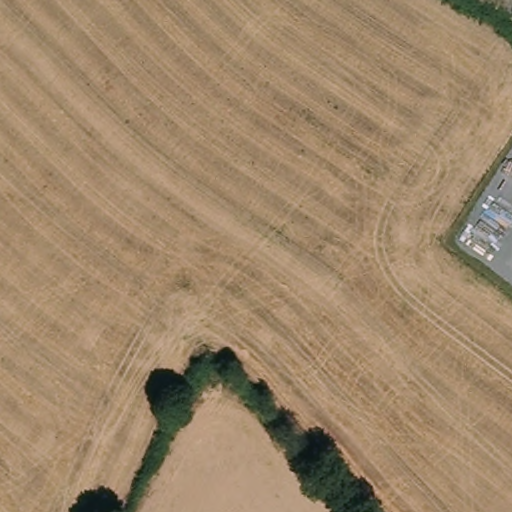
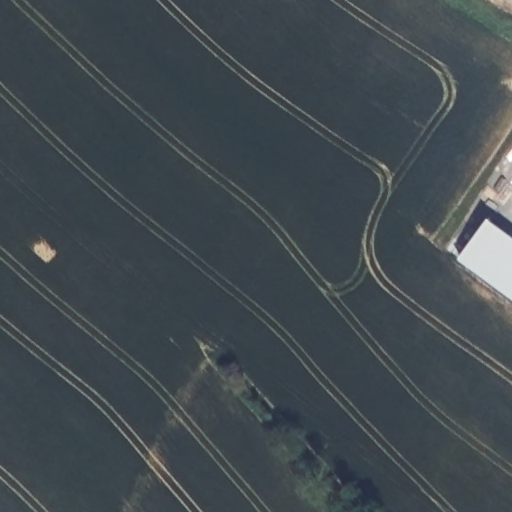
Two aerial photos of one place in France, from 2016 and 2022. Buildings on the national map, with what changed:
new [(512,297),(458,258),(489,217),(512,233),(512,297)]

